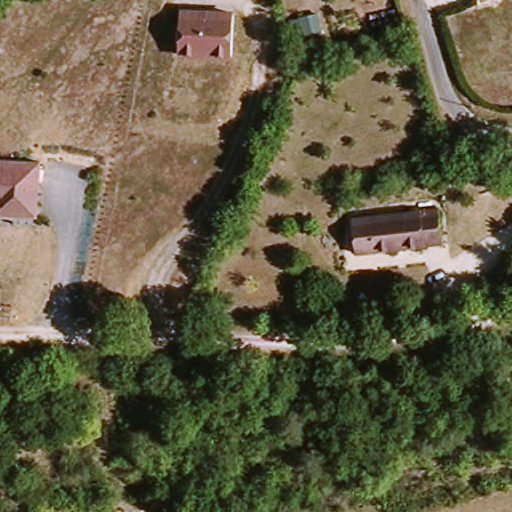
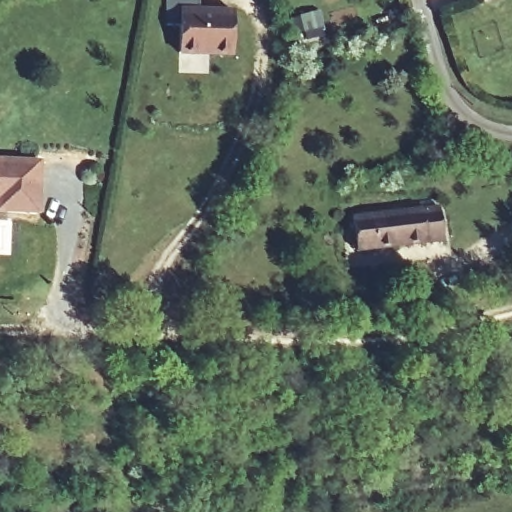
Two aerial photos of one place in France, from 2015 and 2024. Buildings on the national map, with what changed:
unchanged [(176,14),(229,9),(233,51),(179,56),(176,14)]
unchanged [(0,214),(0,155),(41,156),(38,215),(0,214)]
unchanged [(363,213),(429,209),(431,242),(366,248),(363,213)]

